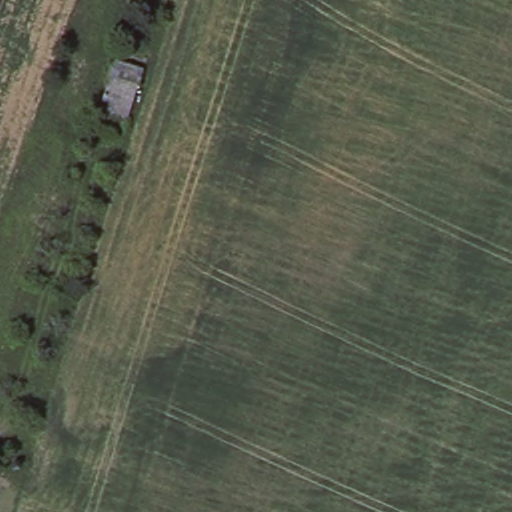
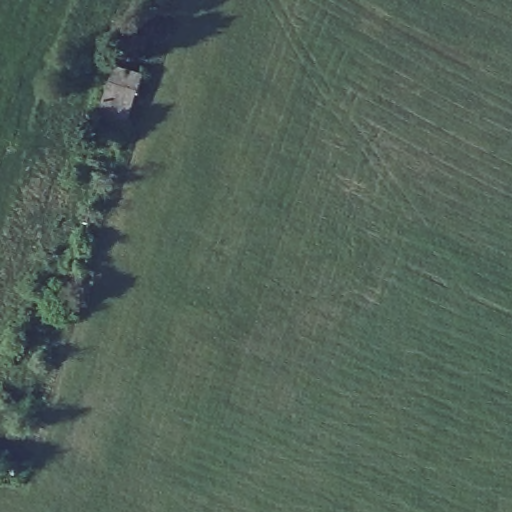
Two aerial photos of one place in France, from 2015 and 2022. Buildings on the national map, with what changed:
unchanged [(99,109),(111,74),(141,87),(126,119),(99,109)]

